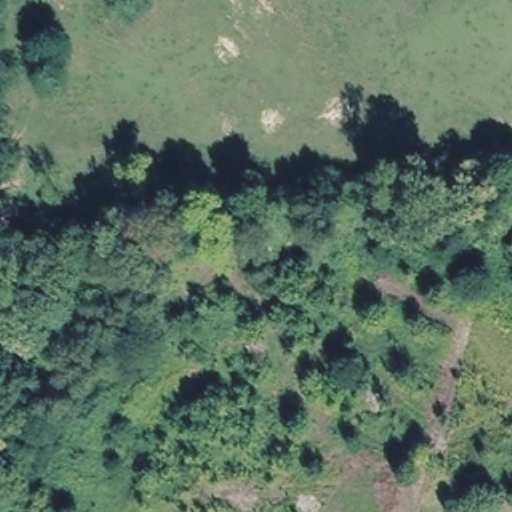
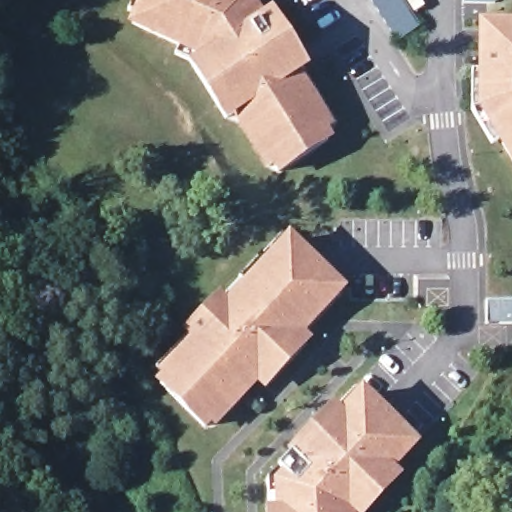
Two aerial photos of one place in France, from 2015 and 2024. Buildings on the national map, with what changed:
new [(272,161),(266,164),(232,112),(224,117),(188,60),(173,52),(131,22),(136,12),(127,9),(130,0),(258,0),(280,34),(301,67),(335,121),(321,130),(327,137),(277,169),(272,161)]
new [(397,40),(372,0),(402,0),(418,26),(397,40)]
new [(497,0),(493,2),(462,2),(462,0),(497,0)]
new [(480,108),(480,87),(481,72),(481,26),(512,26),(512,160),(480,108)]
new [(262,385),(254,378),(212,422),(153,367),(280,233),(338,290),(296,334),(303,341),(262,385)]
new [(484,302),(512,302),(512,324),(483,324),(484,302)]
new [(360,512),(265,512),(263,480),(352,387),(403,437),(411,444),(389,467),(386,470),(393,477),(360,512)]

